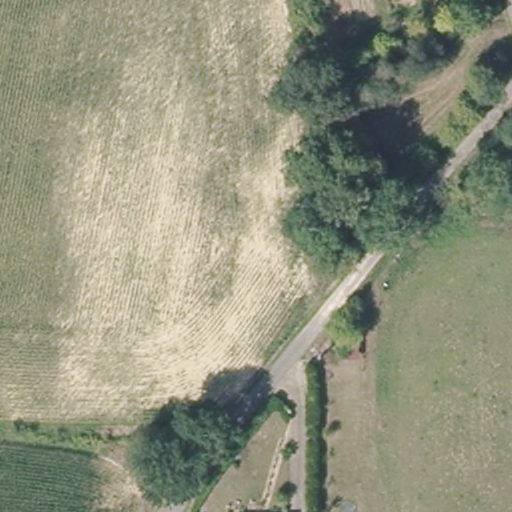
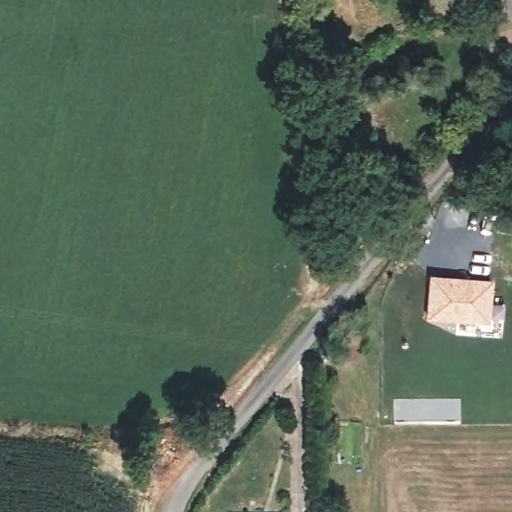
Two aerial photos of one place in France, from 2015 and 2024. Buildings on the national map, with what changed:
unchanged [(375,190),(331,126),(352,110),(396,173),(375,190)]
new [(512,209),(512,234),(490,229),(491,222),(486,220),(490,204),(512,209)]
new [(428,274),(493,280),(488,321),(424,317),(428,274)]

